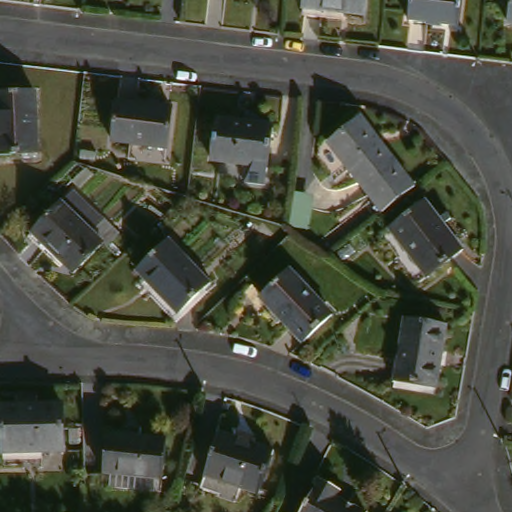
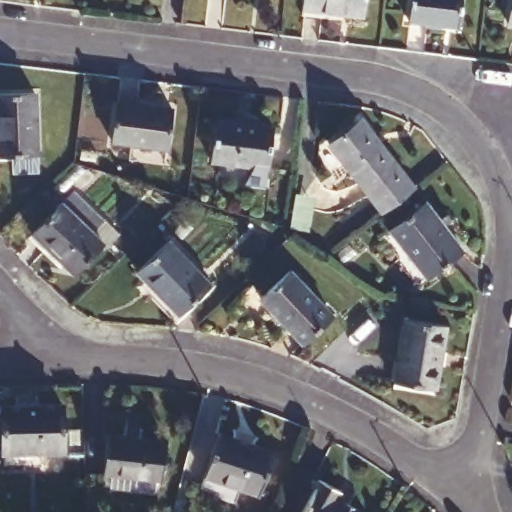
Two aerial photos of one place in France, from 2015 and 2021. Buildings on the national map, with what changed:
unchanged [(331,11),(330,19),(299,14),(301,0),(360,0),(358,15),(331,11)]
unchanged [(404,21),(407,0),(457,0),(454,27),(404,21)]
unchanged [(502,32),(506,0),(512,0),(512,33),(502,32)]
unchanged [(31,160),(0,160),(0,100),(29,99),(31,160)]
unchanged [(166,110),(160,151),(106,144),(111,103),(166,110)]
unchanged [(382,215),(324,148),(355,121),(414,189),(382,215)]
unchanged [(270,132),(260,193),(240,189),(243,172),(209,167),(215,124),(270,132)]
unchanged [(109,240),(78,270),(37,228),(69,200),(109,240)]
unchanged [(464,255),(429,283),(388,235),(424,206),(464,255)]
unchanged [(206,284),(173,315),(131,273),(165,243),(206,284)]
unchanged [(332,321),(304,349),(257,301),(287,274),(332,321)]
unchanged [(444,330),(432,391),(389,383),(401,321),(444,330)]
unchanged [(59,456),(0,457),(0,406),(60,404),(59,456)]
unchanged [(162,439),(159,482),(134,480),(133,493),(109,491),(109,480),(89,477),(93,432),(162,439)]
unchanged [(254,501),(194,480),(207,433),(270,449),(254,501)]
unchanged [(334,495),(330,502),(343,512),(295,512),(315,482),(334,495)]

